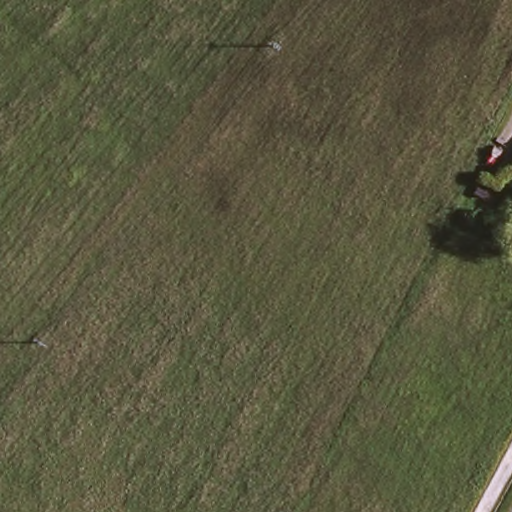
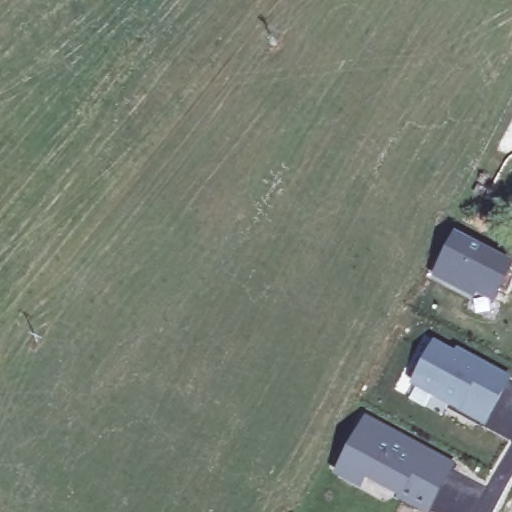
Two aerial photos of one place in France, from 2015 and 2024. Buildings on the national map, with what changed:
new [(502,273),(508,276),(501,290),(494,286),(488,300),(470,291),(468,295),(438,280),(431,276),(442,256),(452,237),(506,265),(502,273)]
new [(454,352),(457,348),(507,375),(502,384),(484,417),(413,380),(434,341),(454,352)]
new [(370,423),(391,434),(387,441),(419,458),(423,452),(451,467),(442,485),(429,509),(366,475),(362,485),(343,474),(348,465),(370,423)]

